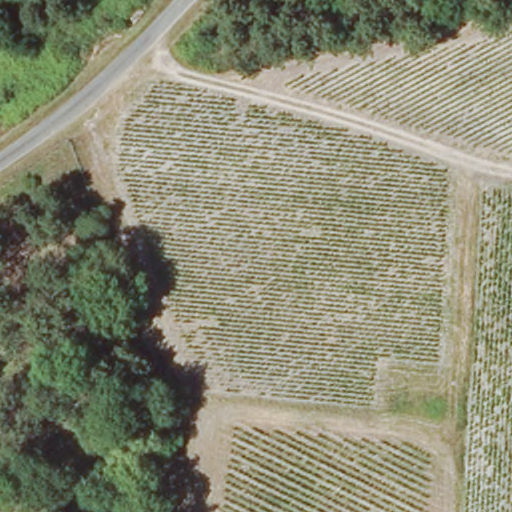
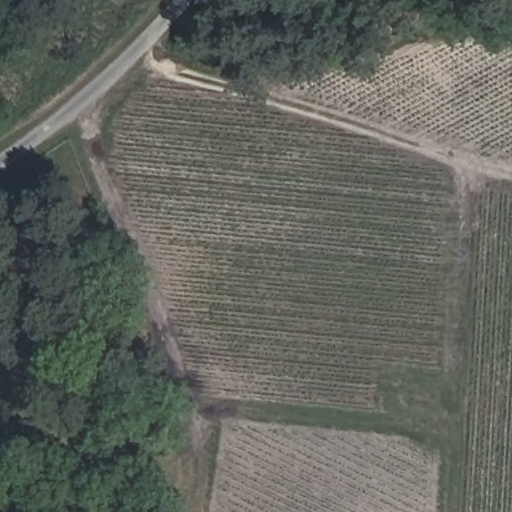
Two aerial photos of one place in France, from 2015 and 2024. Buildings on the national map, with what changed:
[]

